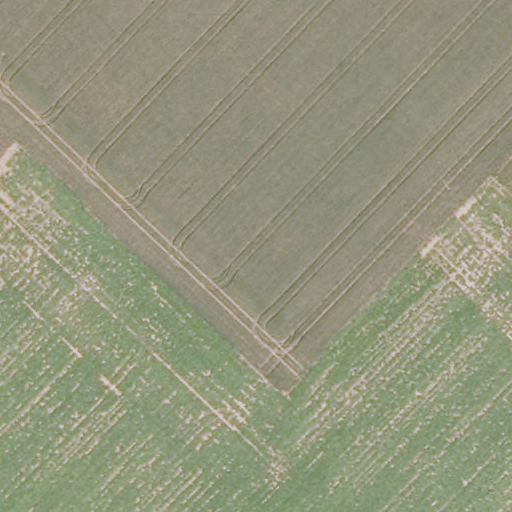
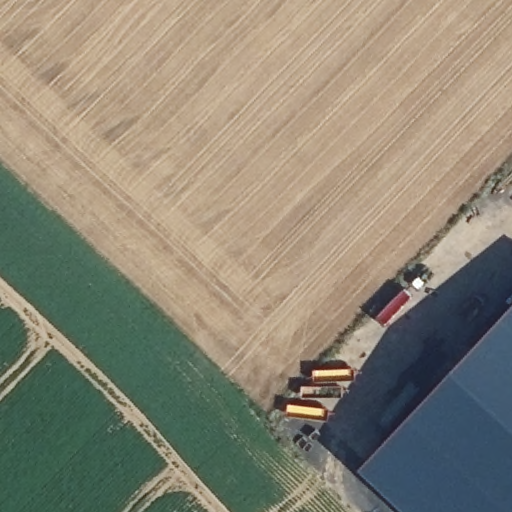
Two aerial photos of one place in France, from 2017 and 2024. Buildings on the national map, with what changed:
new [(420,512),(365,461),(512,304),(512,512),(420,512)]

